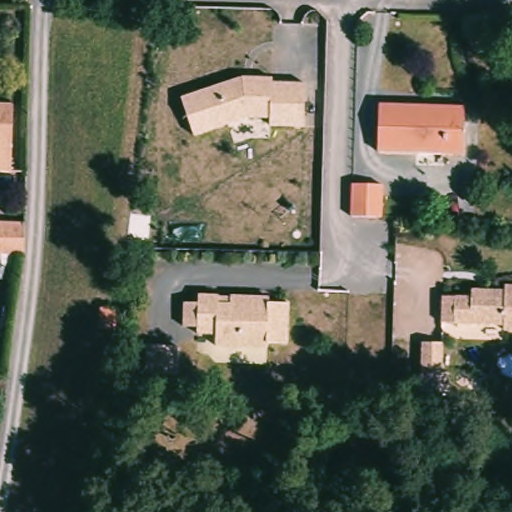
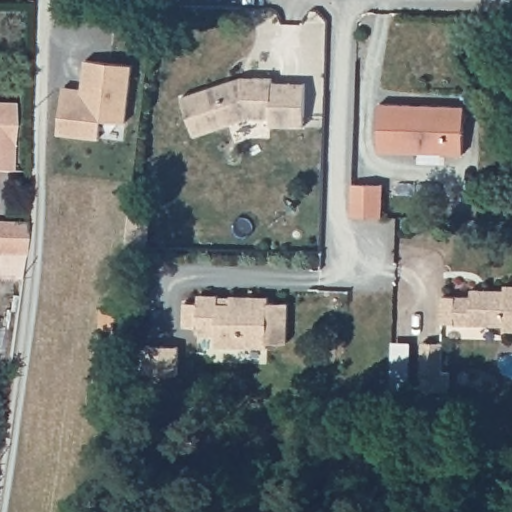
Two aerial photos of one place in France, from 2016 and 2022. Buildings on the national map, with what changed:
new [(82,87),(82,85),(84,74),(86,58),(132,64),(125,121),(101,118),(99,136),(58,131),(64,85),(82,87)]
unchanged [(181,97),(244,75),(274,77),(274,83),(305,84),(301,127),(269,125),(268,117),(245,116),(194,135),(181,97)]
unchanged [(12,105),(11,147),(10,171),(0,171),(0,104),(12,105)]
unchanged [(375,155),(377,107),(460,110),(458,159),(375,155)]
unchanged [(389,182),(389,213),(359,211),(360,181),(389,182)]
unchanged [(20,260),(0,259),(0,228),(21,229),(20,260)]
unchanged [(504,322),(443,319),(444,292),(473,293),(473,286),(507,288),(507,283),(512,283),(512,328),(504,327),(504,322)]
unchanged [(272,296),(292,297),(290,336),(270,335),(270,340),(219,338),(219,326),(201,325),(201,318),(187,317),(187,295),(202,295),(202,287),(222,288),(234,289),(273,291),(272,296)]
unchanged [(98,330),(101,308),(116,310),(114,331),(98,330)]
unchanged [(442,339),(441,368),(448,368),(447,387),(420,385),(421,368),(422,338),(442,339)]
unchanged [(176,343),(175,371),(144,370),(145,342),(176,343)]

